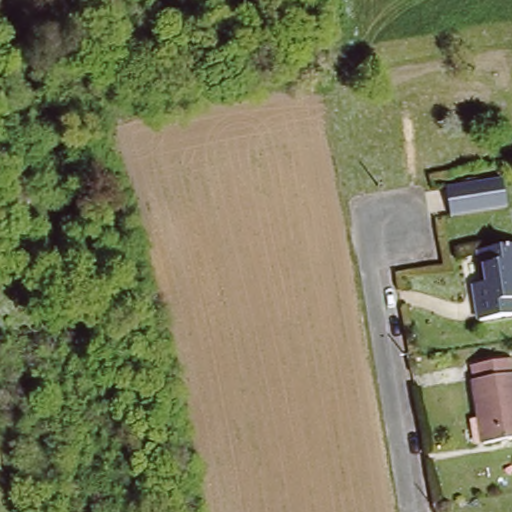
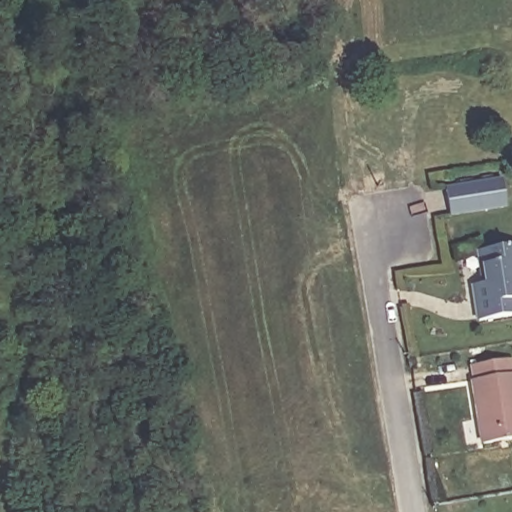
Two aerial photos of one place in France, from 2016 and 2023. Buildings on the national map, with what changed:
unchanged [(446,189),(503,179),(508,205),(451,215),(446,189)]
unchanged [(512,320),(483,325),(476,288),(487,286),(481,252),(512,246),(512,320)]
unchanged [(512,441),(486,446),(472,367),(512,360),(512,441)]

